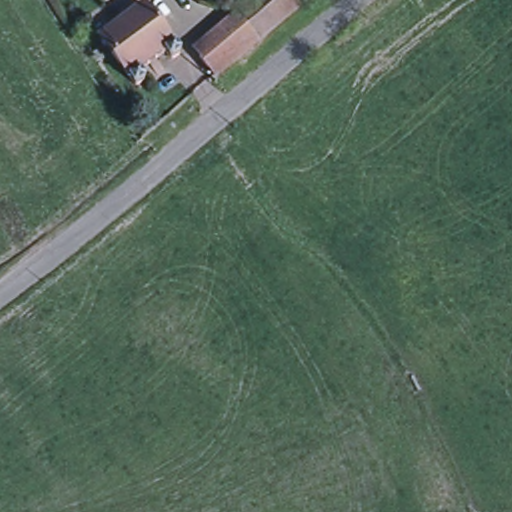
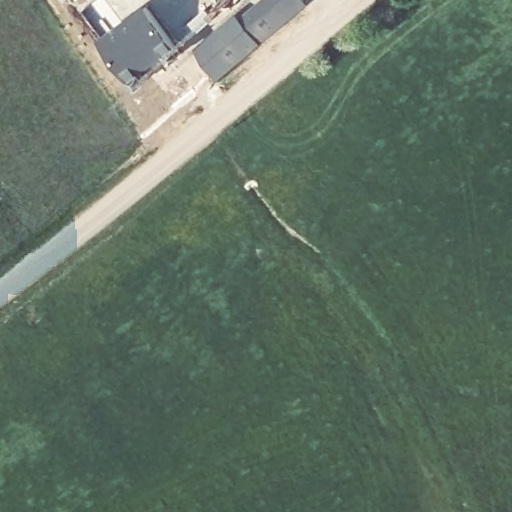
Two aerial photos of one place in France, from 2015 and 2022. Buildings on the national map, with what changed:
unchanged [(294,0),(276,17),(253,36),(237,16),(255,0),(294,0)]
unchanged [(175,52),(175,54),(168,60),(166,59),(161,52),(135,72),(140,79),(140,80),(132,86),(130,85),(97,40),(97,39),(83,20),(97,10),(111,29),(141,7),(175,52)]
unchanged [(195,52),(237,16),(253,36),(210,72),(195,52)]

